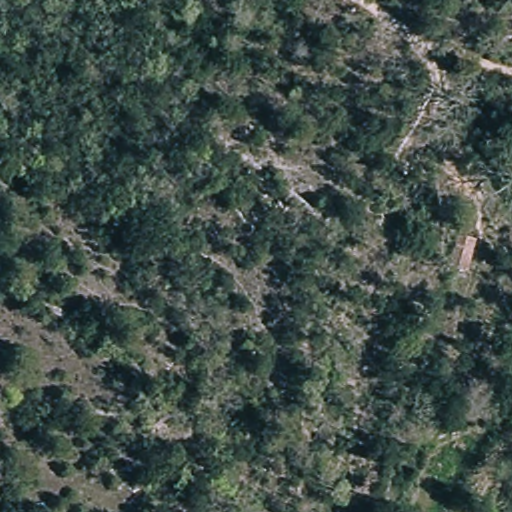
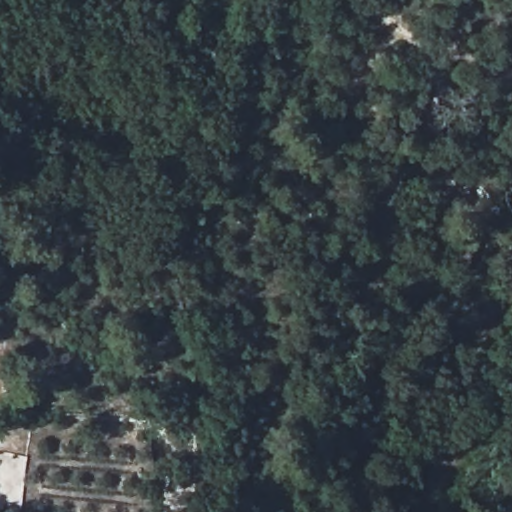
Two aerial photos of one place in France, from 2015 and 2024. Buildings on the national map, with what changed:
unchanged [(443,273),(452,238),(473,245),(464,275),(443,273)]

